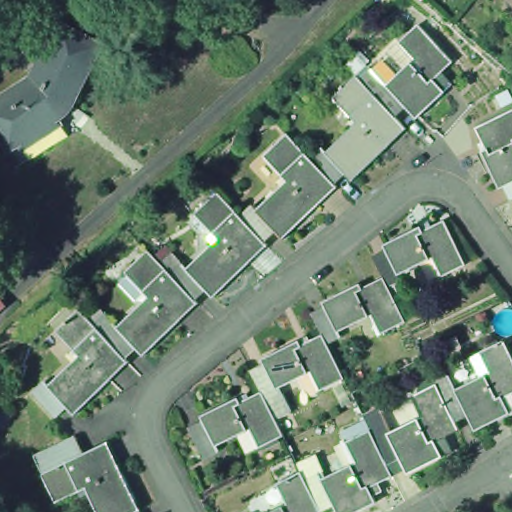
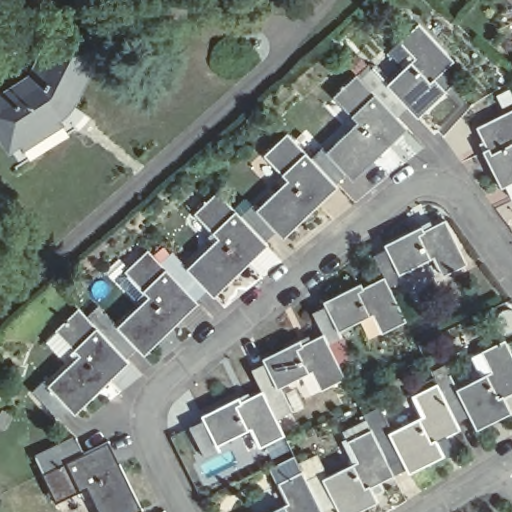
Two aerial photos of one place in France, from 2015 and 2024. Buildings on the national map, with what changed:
unchanged [(511,0),(512,0),(512,1),(511,0)]
unchanged [(76,92),(78,94),(77,96),(70,91),(67,98),(66,101),(64,103),(62,105),(59,106),(52,109),(57,116),(55,116),(54,114),(38,124),(39,125),(37,127),(36,125),(20,134),(22,136),(20,137),(19,135),(9,141),(0,127),(0,90),(32,71),(62,20),(104,44),(76,92)]
unchanged [(386,85),(390,90),(419,62),(404,46),(422,27),(458,65),(439,83),(450,95),(422,123),(410,111),(399,121),(375,96),(386,85)]
unchanged [(357,185),(350,177),(340,189),(315,162),(327,152),(332,158),(362,127),(338,101),(360,79),(375,96),(399,121),(410,133),(357,185)]
unchanged [(506,189),(500,192),(483,156),(487,154),(477,131),(512,115),(512,202),(506,189)]
unchanged [(287,244),(281,237),(270,247),(246,222),(257,211),(261,216),(291,186),(267,160),(290,137),(315,162),(340,189),(342,191),(287,244)]
unchanged [(218,302),(211,295),(200,305),(177,280),(187,270),(192,274),(222,245),(198,219),(221,196),(246,222),(270,247),(274,250),(218,302)]
unchanged [(385,250),(383,244),(420,226),(421,231),(443,220),(465,265),(441,277),(432,258),(397,275),(400,281),(390,287),(384,275),(374,255),(385,250)]
unchanged [(147,362),(140,354),(132,364),(107,338),(117,328),(122,333),(152,303),(128,278),(151,254),(177,280),(200,305),(202,307),(147,362)]
unchanged [(325,306),(322,301),(360,281),(362,287),(384,275),(390,287),(407,321),(382,333),(372,314),(337,331),(340,338),(327,345),(322,335),(310,313),(325,306)]
unchanged [(0,301),(0,293),(4,297),(0,301)]
unchanged [(80,420),(72,412),(62,423),(37,398),(47,387),(52,392),(82,362),(59,336),(85,313),(93,323),(107,338),(132,364),(134,366),(80,420)]
unchanged [(320,390),(312,371),(276,387),(279,394),(264,400),(260,391),(249,369),(264,363),(261,358),(297,341),(300,346),(322,335),(327,345),(344,379),(320,390)]
unchanged [(479,431),(471,415),(460,421),(454,408),(445,390),(456,385),(458,390),(494,371),(485,352),(509,340),(512,348),(512,409),(512,413),(479,431)]
unchanged [(357,512),(342,512),(338,504),(325,510),(309,479),(322,472),(325,477),(360,460),(350,440),(352,440),(348,431),(370,420),(366,414),(385,405),(388,411),(385,413),(394,430),(425,415),(415,395),(442,382),(445,390),(454,408),(460,421),(464,428),(449,435),(454,446),(457,451),(445,456),(412,473),(409,468),(396,473),(397,474),(381,482),(385,490),(376,494),(380,501),(357,512)]
unchanged [(259,448),(250,428),(215,445),(217,451),(202,459),(187,427),(203,420),(200,415),(237,397),(238,402),(260,391),(264,400),(282,436),(259,448)]
unchanged [(96,493),(65,509),(50,479),(51,479),(44,464),(86,443),(94,458),(117,447),(150,512),(105,512),(96,493)]
unchanged [(290,502),(280,482),(305,470),(309,479),(325,510),(326,512),(268,512),(290,502)]

